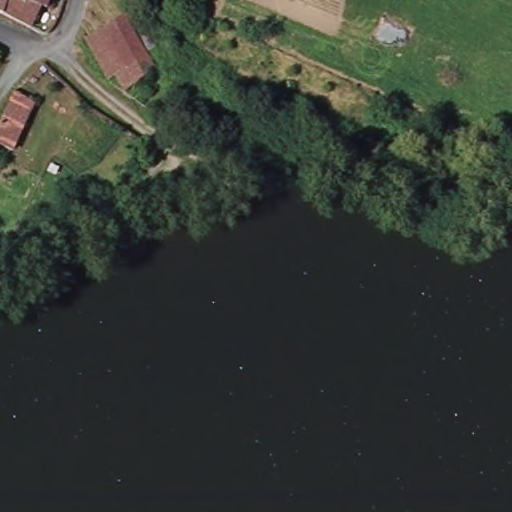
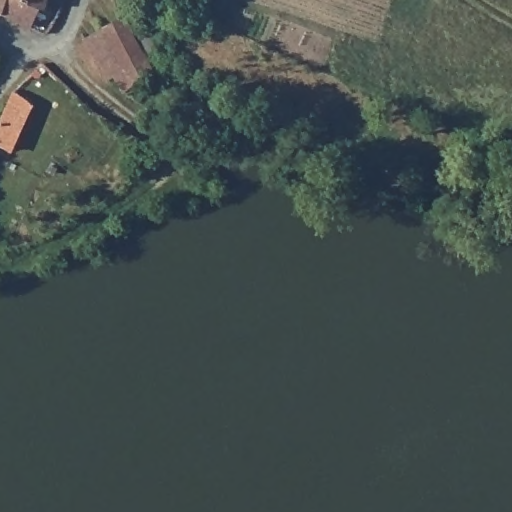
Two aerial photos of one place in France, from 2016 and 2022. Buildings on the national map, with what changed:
unchanged [(0,10),(0,0),(12,0),(8,14),(0,10)]
unchanged [(8,14),(12,0),(32,0),(59,12),(51,34),(8,14)]
unchanged [(32,0),(62,0),(59,12),(32,0)]
unchanged [(105,74),(87,38),(103,25),(125,8),(144,47),(150,59),(141,70),(129,85),(114,71),(105,74)]
unchanged [(0,58),(0,55),(1,56),(0,58)]
unchanged [(13,93),(25,98),(13,127),(20,131),(11,151),(0,144),(0,122),(1,120),(13,93)]

